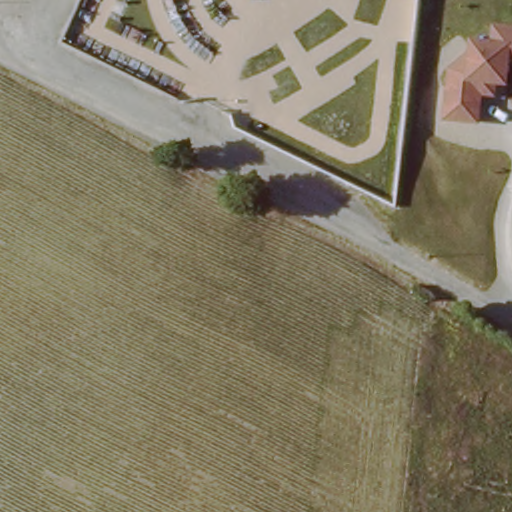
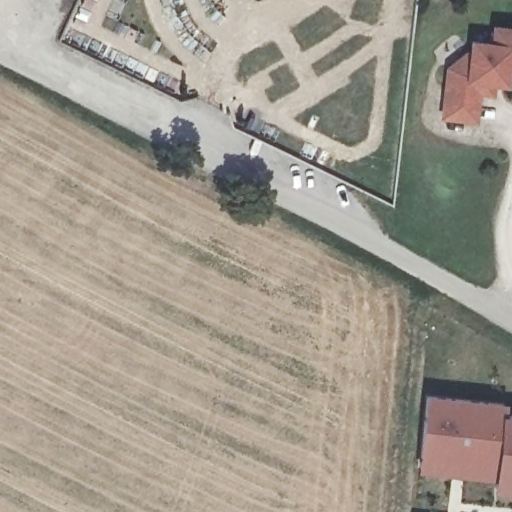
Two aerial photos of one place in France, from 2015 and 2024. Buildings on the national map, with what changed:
unchanged [(481,126),(440,122),(446,72),(472,51),(472,41),(493,42),(493,25),(512,26),(512,73),(483,97),(481,126)]
new [(497,484),(423,477),(430,398),(510,407),(509,418),(512,418),(512,496),(497,495),(497,484)]

